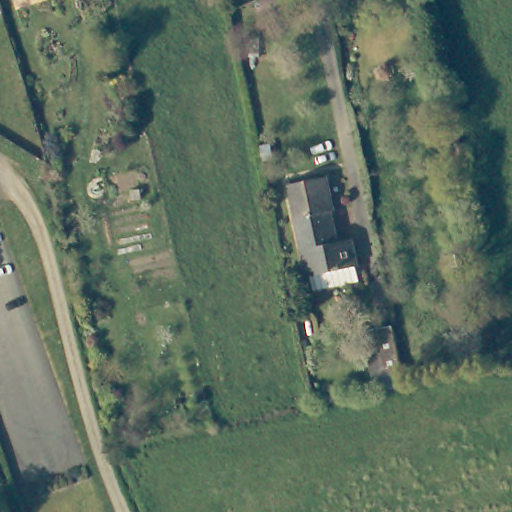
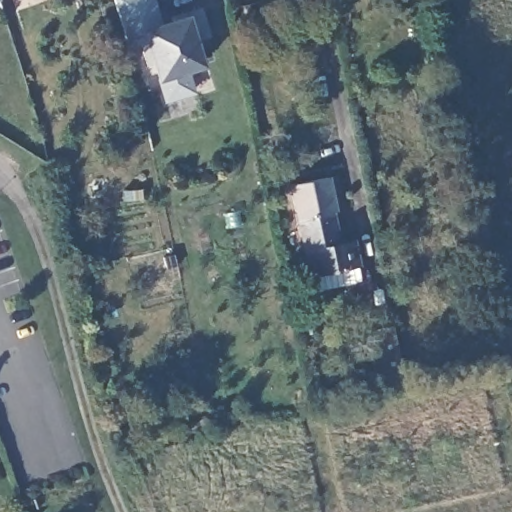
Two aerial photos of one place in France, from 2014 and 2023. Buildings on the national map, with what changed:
new [(163,21),(186,14),(198,7),(209,38),(198,44),(204,66),(191,70),(196,94),(163,104),(160,80),(154,82),(141,42),(127,44),(114,0),(155,0),(163,21)]
unchanged [(285,186),(321,178),(328,212),(292,218),(285,186)]
unchanged [(328,212),(334,243),(348,240),(355,267),(305,277),(292,218),(328,212)]
unchanged [(376,336),(389,333),(395,364),(381,366),(376,336)]

